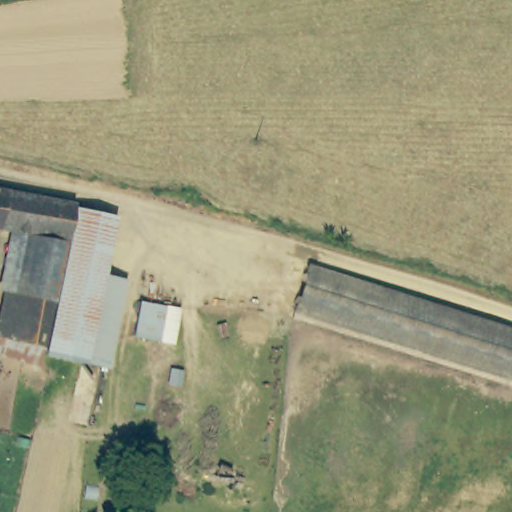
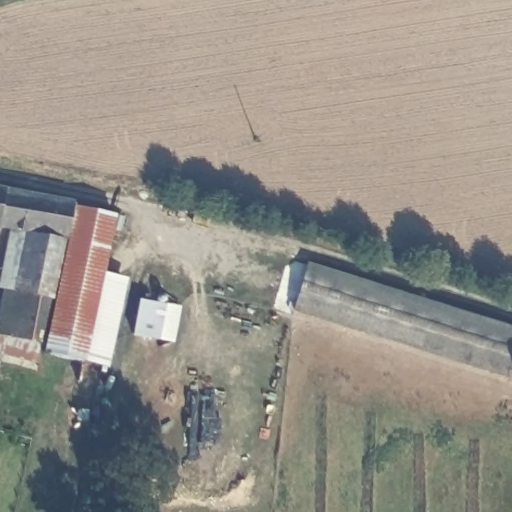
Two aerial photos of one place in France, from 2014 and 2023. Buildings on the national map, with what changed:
unchanged [(0,355),(0,317),(5,292),(15,294),(28,235),(0,229),(0,191),(74,207),(114,216),(101,273),(82,362),(81,363),(41,354),(40,364),(0,355)]
unchanged [(512,377),(295,310),(309,265),(512,328),(512,377)]
unchanged [(101,273),(122,278),(102,366),(82,362),(101,273)]
unchanged [(162,307),(155,340),(130,334),(138,301),(162,307)]

